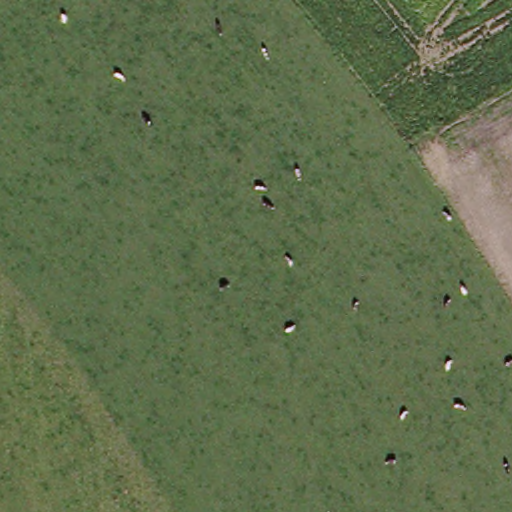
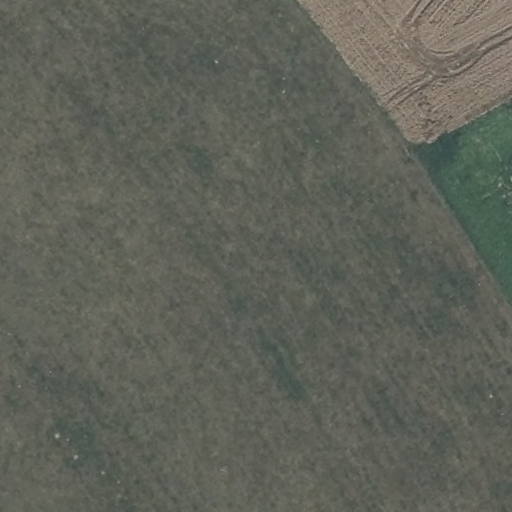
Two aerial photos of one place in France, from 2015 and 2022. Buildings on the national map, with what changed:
[]

